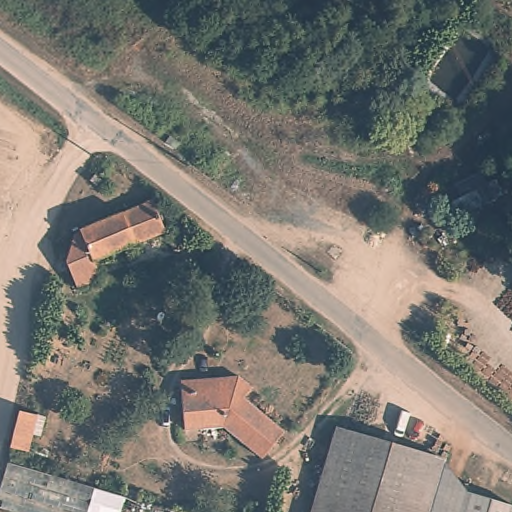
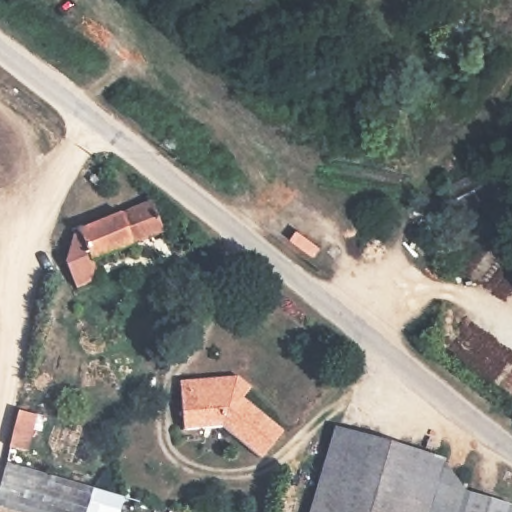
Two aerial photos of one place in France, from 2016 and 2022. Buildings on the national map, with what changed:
unchanged [(165,235),(82,270),(89,285),(65,296),(49,264),(62,226),(146,192),(165,235)]
unchanged [(256,387),(243,405),(284,433),(264,462),(216,427),(189,429),(183,385),(240,375),(256,387)]
unchanged [(30,409),(17,449),(5,446),(17,404),(30,409)]
unchanged [(428,512),(312,512),(331,427),(442,457),(428,512)]
unchanged [(460,483),(462,487),(457,512),(428,512),(442,457),(460,483)]
unchanged [(505,512),(457,512),(462,487),(508,499),(505,512)]

